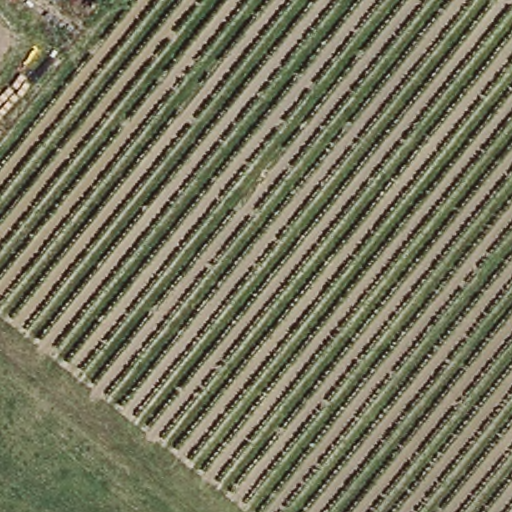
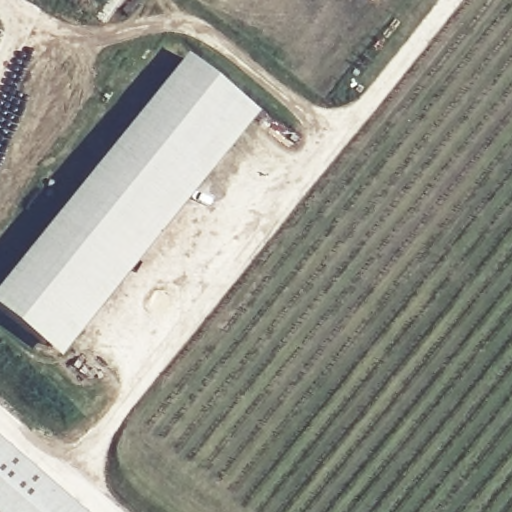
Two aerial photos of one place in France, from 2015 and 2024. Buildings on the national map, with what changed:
new [(0,309),(0,293),(190,57),(260,114),(63,359),(0,309)]
new [(0,438),(85,512),(0,512),(0,438)]

